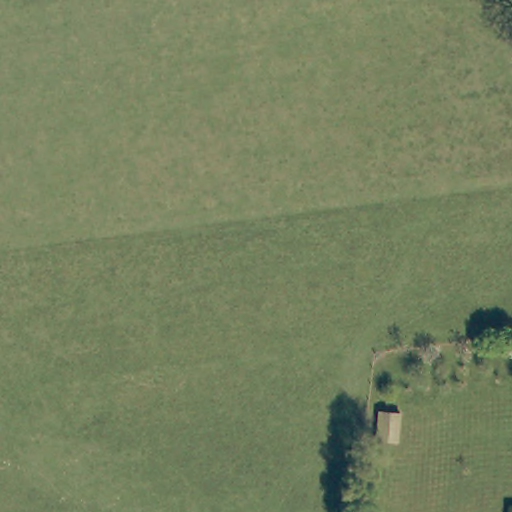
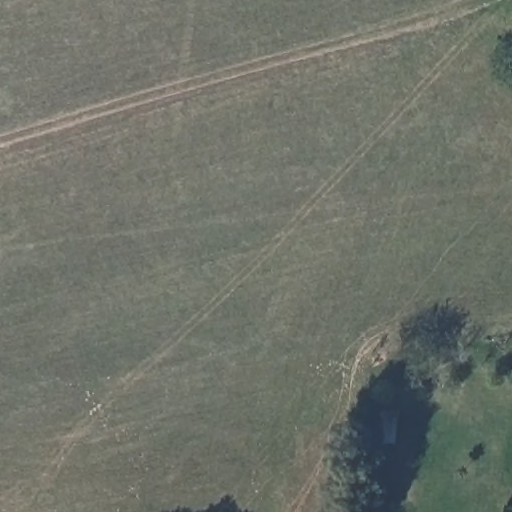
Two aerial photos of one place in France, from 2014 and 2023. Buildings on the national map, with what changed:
[]

